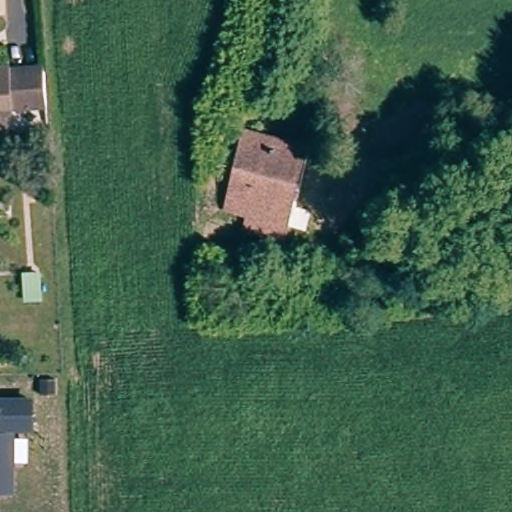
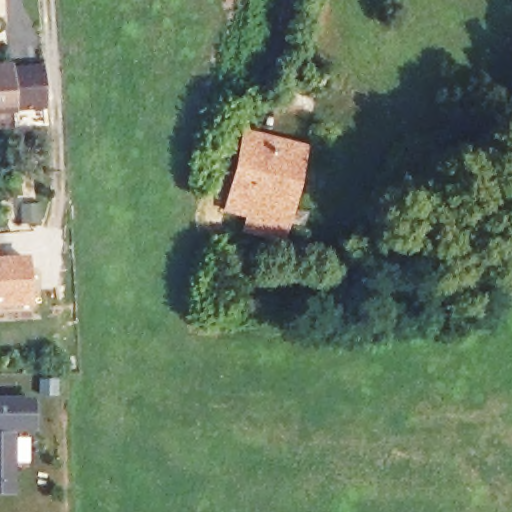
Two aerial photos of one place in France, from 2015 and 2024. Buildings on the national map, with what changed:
unchanged [(13,66),(14,69),(44,67),(46,102),(16,104),(16,109),(0,109),(0,66),(13,66)]
unchanged [(11,109),(11,129),(0,129),(0,109),(11,109)]
unchanged [(234,230),(237,215),(225,212),(242,134),(307,148),(288,227),(285,242),(250,234),(234,230)]
new [(29,255),(33,305),(0,307),(0,257),(29,255)]
unchanged [(35,396),(36,431),(15,432),(17,493),(0,493),(0,396),(35,396)]

